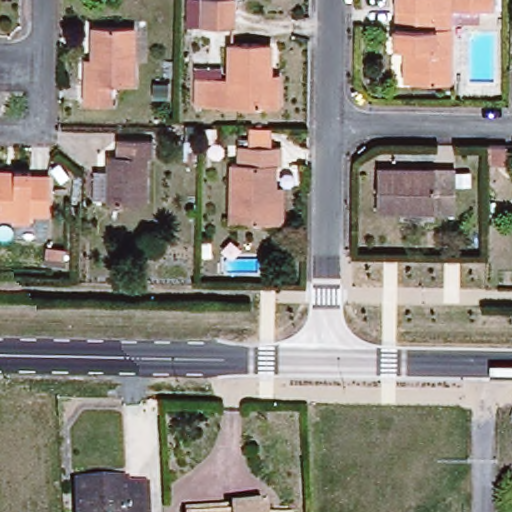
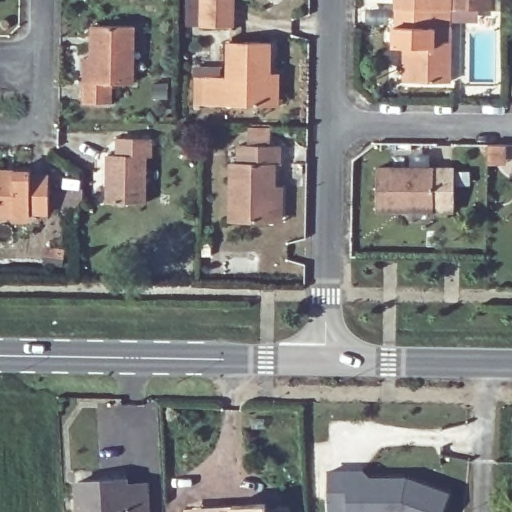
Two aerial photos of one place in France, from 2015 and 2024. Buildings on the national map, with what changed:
unchanged [(235,27),(199,28),(200,0),(236,0),(235,27)]
unchanged [(489,10),(447,10),(447,83),(408,82),(406,43),(394,44),(394,0),(488,0),(489,10)]
unchanged [(90,58),(91,23),(133,27),(132,82),(115,80),(113,104),(79,102),(81,79),(82,58),(90,58)]
unchanged [(277,107),(265,107),(206,104),(206,76),(224,76),(226,42),(266,46),(266,74),(278,75),(277,107)]
unchanged [(147,156),(142,156),(138,204),(102,202),(105,151),(111,152),(113,137),(146,139),(147,156)]
unchanged [(281,223),(270,224),(223,221),(228,164),(232,161),(234,147),(279,149),(278,168),(274,168),(273,186),(281,186),(281,223)]
unchanged [(455,167),(456,215),(376,213),(375,169),(455,167)]
unchanged [(26,212),(25,217),(0,215),(0,169),(29,168),(28,174),(45,174),(44,211),(26,212)]
new [(370,476),(407,474),(450,488),(442,512),(412,512),(401,509),(373,510),(373,512),(350,512),(350,508),(331,509),(329,471),(349,470),(363,470),(370,476)]
unchanged [(74,512),(72,489),(123,485),(124,490),(144,488),(145,512),(74,512)]
unchanged [(263,507),(263,512),(231,512),(231,507),(263,507)]

